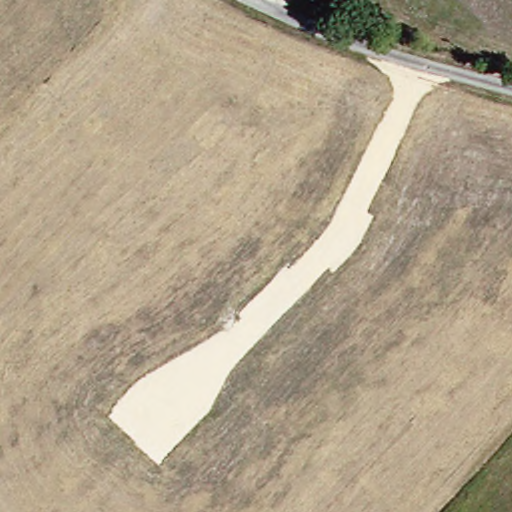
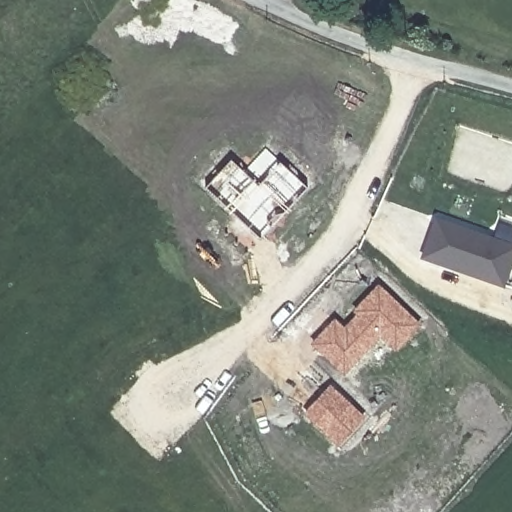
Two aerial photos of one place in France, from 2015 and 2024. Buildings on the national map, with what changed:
new [(260,238),(205,187),(231,158),(260,185),(280,162),(307,189),(260,238)]
new [(505,290),(420,260),(435,217),(512,244),(512,270),(505,290)]
new [(395,351),(380,337),(343,375),(310,343),(335,318),(345,327),(357,315),(353,310),(379,284),(422,325),(395,351)]
new [(338,446),(304,413),(330,384),(366,418),(338,446)]

